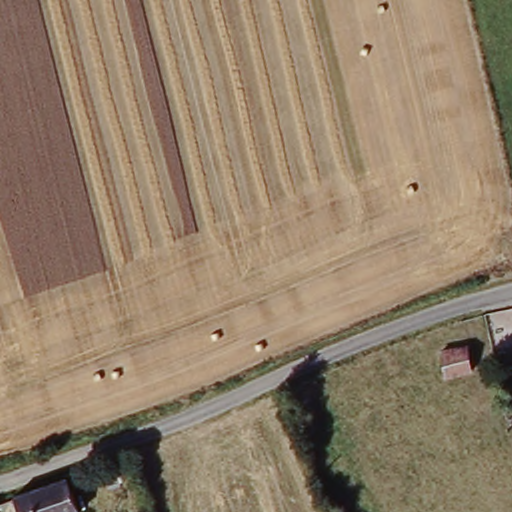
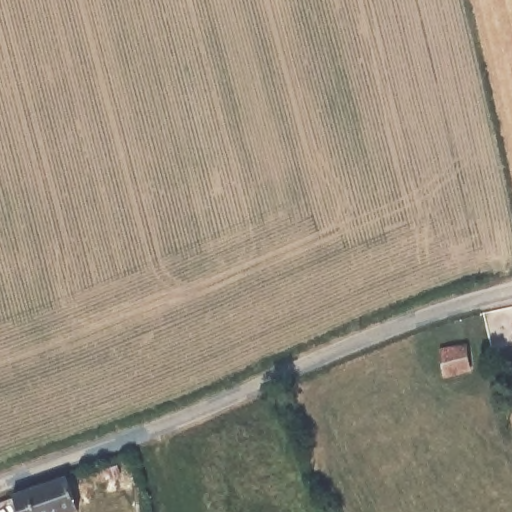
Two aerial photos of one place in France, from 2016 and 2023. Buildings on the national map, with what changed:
unchanged [(467,347),(474,371),(447,379),(440,355),(467,347)]
unchanged [(71,473),(83,509),(75,512),(8,512),(5,499),(71,473)]

